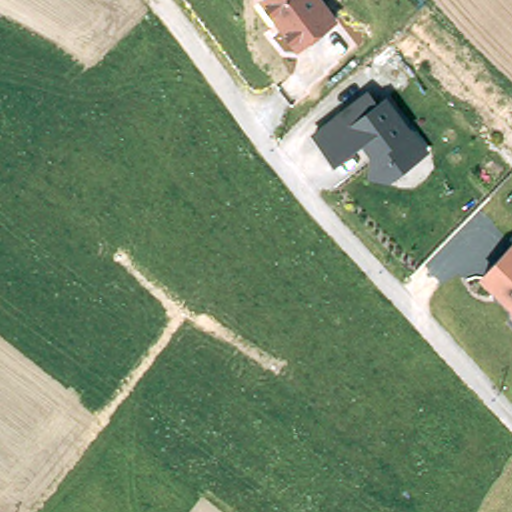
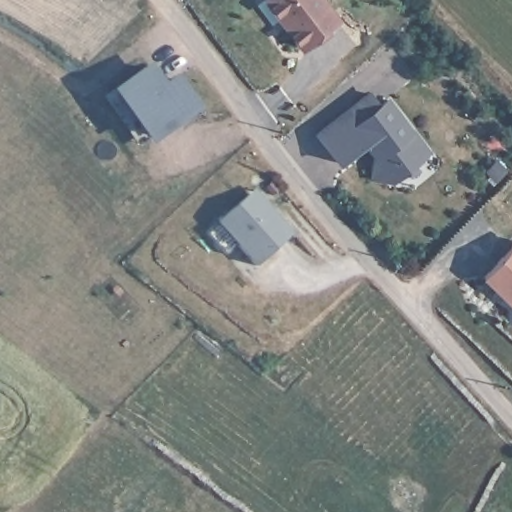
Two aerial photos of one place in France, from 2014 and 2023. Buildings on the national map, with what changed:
unchanged [(266,1),(267,0),(325,0),(339,18),(300,49),(266,1)]
new [(150,61),(166,84),(176,76),(201,112),(150,148),(109,90),(150,61)]
unchanged [(315,132),(370,92),(379,105),(389,97),(413,134),(419,131),(431,151),(393,181),(369,176),(374,156),(366,142),(336,165),(315,132)]
new [(253,190),(293,233),(256,265),(216,223),(253,190)]
unchanged [(481,278),(512,245),(512,308),(481,278)]

